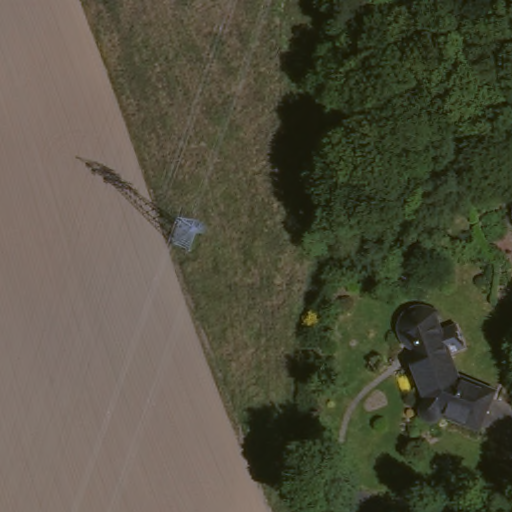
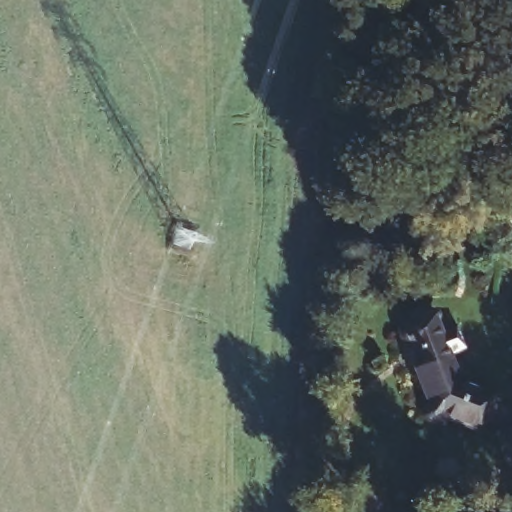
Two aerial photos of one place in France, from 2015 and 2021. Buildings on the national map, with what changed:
unchanged [(483,443),(452,416),(444,424),(434,426),(426,424),(418,416),(418,405),(424,395),(417,365),(421,345),(410,343),(402,337),(398,327),(399,316),(406,303),(421,301),(433,305),(439,314),(446,329),(462,322),(472,344),(455,352),(465,376),(508,409),(491,433),(483,443)]

